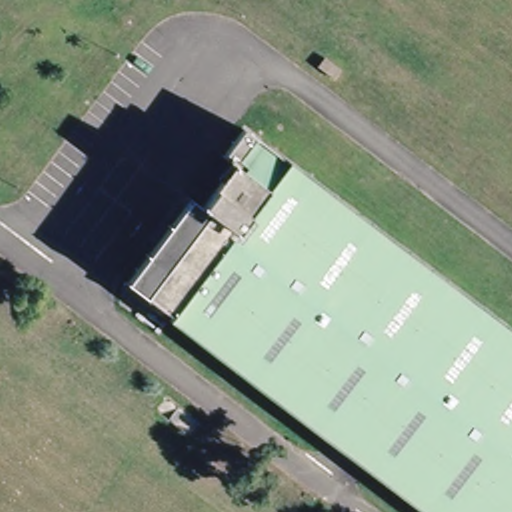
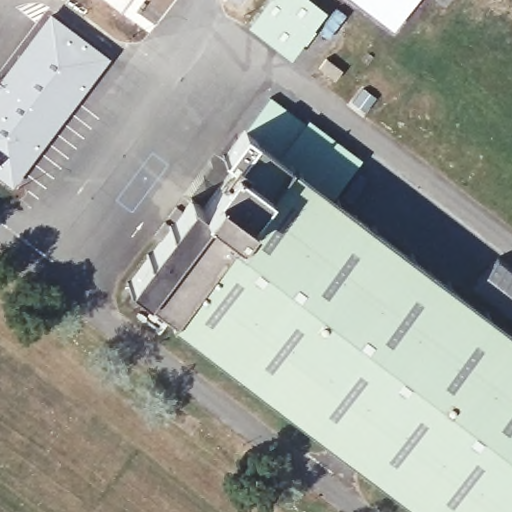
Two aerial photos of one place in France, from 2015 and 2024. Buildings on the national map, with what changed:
new [(291,57),(248,26),(268,0),(310,0),(326,12),(291,57)]
new [(393,29),(354,0),(416,0),(393,29)]
new [(13,187),(0,178),(0,76),(49,11),(111,55),(13,187)]
new [(271,97),(306,125),(282,157),(245,129),(271,97)]
new [(310,119),(364,159),(335,197),(282,157),(306,125),(310,119)]
unchanged [(200,212),(229,164),(220,158),(242,127),(245,129),(282,157),(512,332),(512,512),(419,512),(127,282),(185,202),(200,212)]

